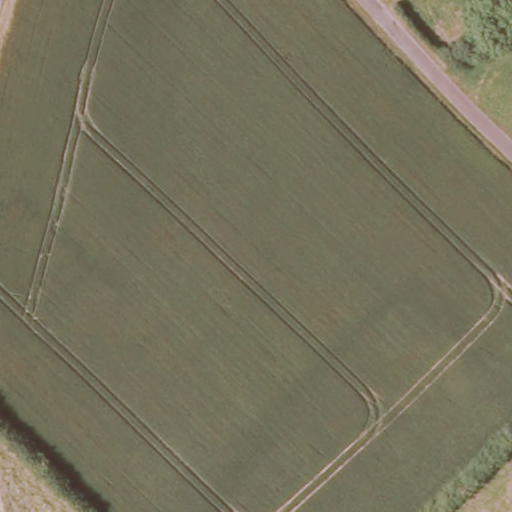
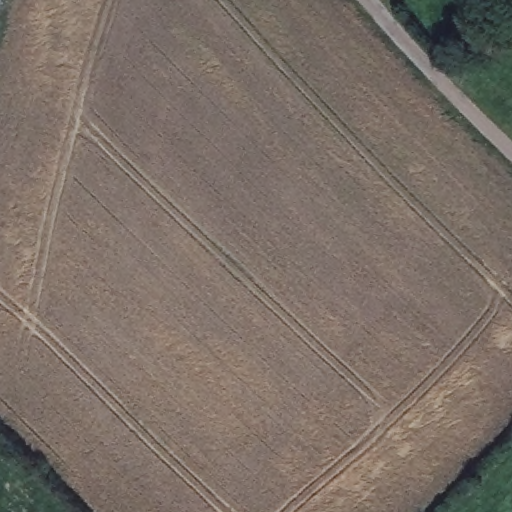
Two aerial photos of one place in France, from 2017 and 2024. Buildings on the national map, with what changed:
[]

